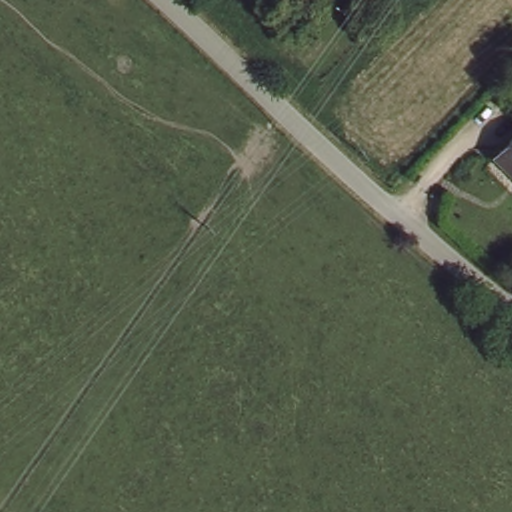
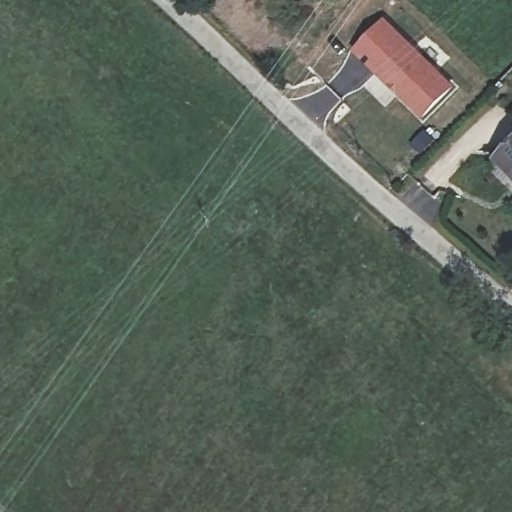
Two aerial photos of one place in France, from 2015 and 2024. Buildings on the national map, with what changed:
unchanged [(309,0),(313,0),(311,1),(309,0)]
new [(422,120),(351,51),(384,17),(454,87),(422,120)]
unchanged [(512,141),(512,164),(501,152),(512,141)]

